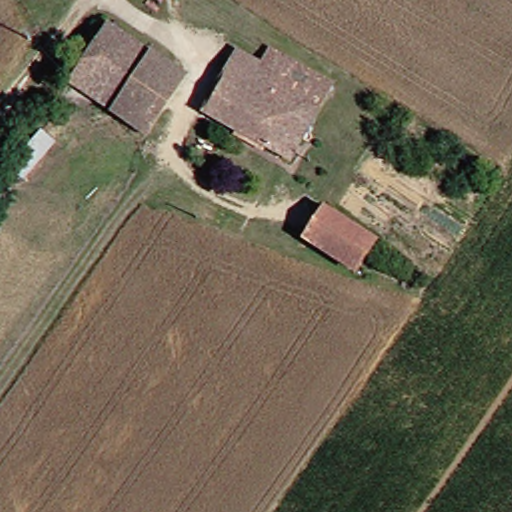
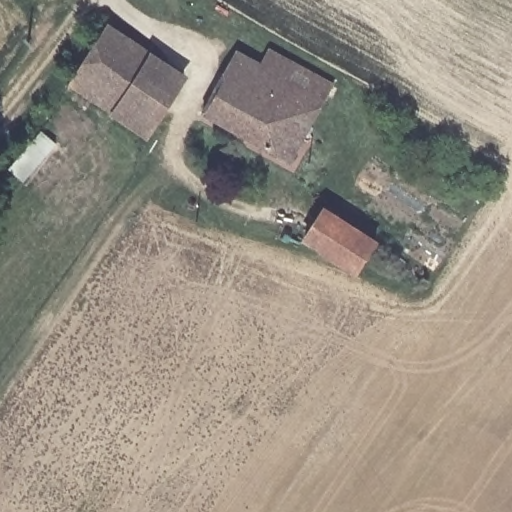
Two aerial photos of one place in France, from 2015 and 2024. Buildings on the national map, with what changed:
unchanged [(123,108),(78,82),(113,23),(158,52),(123,108)]
unchanged [(189,71),(153,128),(123,108),(158,52),(189,71)]
unchanged [(334,103),(327,100),(295,162),(210,113),(241,52),(300,85),(307,71),(340,89),(334,103)]
unchanged [(357,271),(307,239),(323,211),(374,243),(357,271)]

